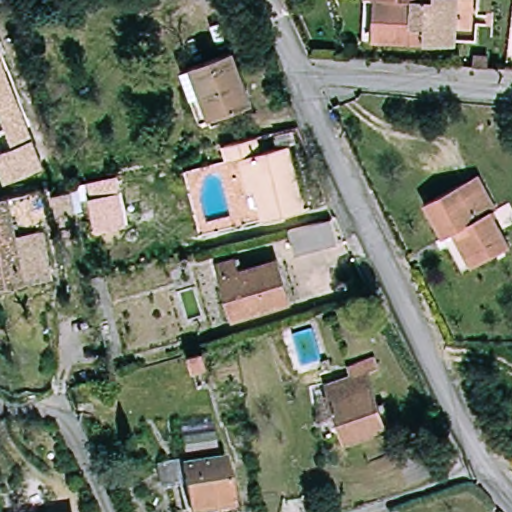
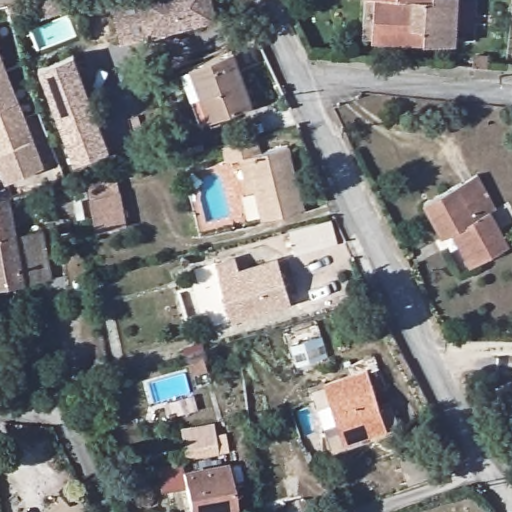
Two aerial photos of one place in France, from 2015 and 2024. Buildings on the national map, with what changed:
new [(50,0),(64,0),(67,12),(39,19),(35,3),(50,0)]
new [(146,35),(122,41),(113,0),(212,0),(217,19),(146,35)]
unchanged [(366,38),(366,0),(382,0),(383,21),(428,24),(428,42),(366,38)]
unchanged [(383,21),(382,0),(460,0),(460,44),(428,42),(428,24),(383,21)]
new [(73,163),(37,67),(74,53),(110,149),(73,163)]
unchanged [(179,70),(190,67),(235,53),(252,109),(196,125),(179,70)]
unchanged [(0,177),(0,59),(39,167),(2,181),(0,177)]
unchanged [(226,167),(222,151),(250,144),(254,160),(244,163),(226,167)]
unchanged [(301,212),(270,220),(265,199),(254,160),(283,153),(301,212)]
unchanged [(116,175),(118,190),(125,222),(97,231),(90,198),(88,181),(116,175)]
unchanged [(454,236),(445,241),(427,209),(480,180),(498,212),(490,216),(510,251),(481,267),(473,271),(454,236)]
unchanged [(50,193),(70,188),(75,211),(55,215),(50,193)]
unchanged [(13,234),(42,229),(51,279),(0,288),(0,198),(7,197),(13,234)]
unchanged [(288,230),(333,220),(339,242),(293,254),(288,230)]
unchanged [(215,267),(232,261),(237,275),(275,263),(289,304),(233,322),(215,267)]
unchanged [(193,365),(190,350),(204,346),(208,361),(193,365)]
unchanged [(386,428),(347,441),(328,383),(368,369),(386,428)]
unchanged [(438,473),(410,477),(405,447),(434,443),(438,473)]
unchanged [(226,465),(234,511),(228,512),(189,512),(182,474),(226,465)]

